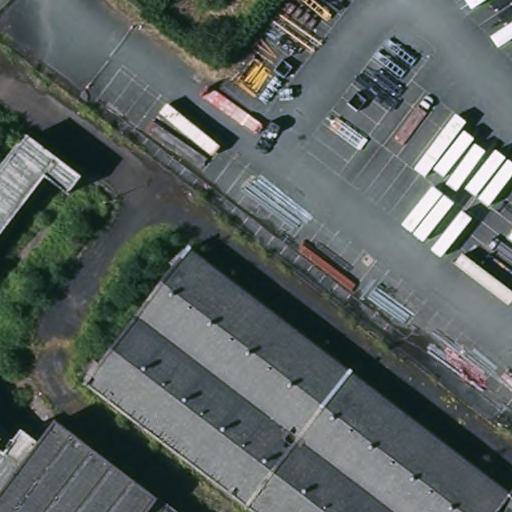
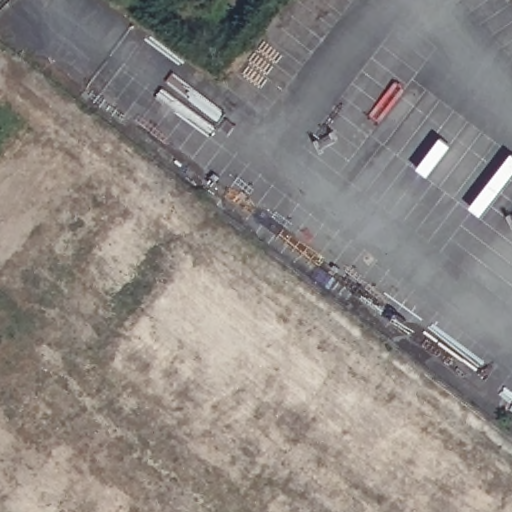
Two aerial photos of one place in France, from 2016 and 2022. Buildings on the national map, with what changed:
demolished [(31,134),(83,174),(69,192),(47,175),(0,236),(0,173),(31,134)]
demolished [(188,247),(510,493),(512,490),(512,512),(258,512),(86,379),(188,247)]
demolished [(5,428),(14,436),(21,426),(39,439),(57,416),(120,465),(181,512),(0,512),(0,423),(5,428)]

